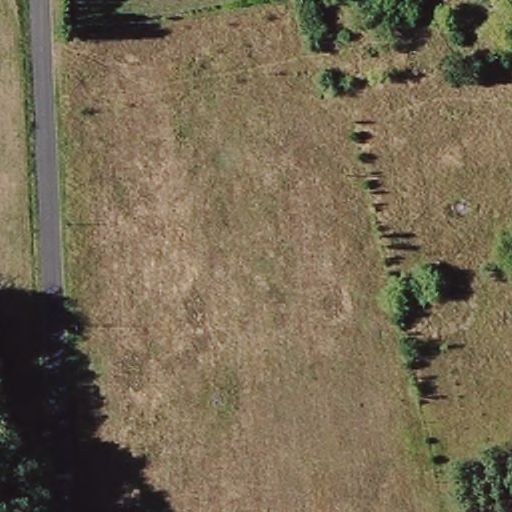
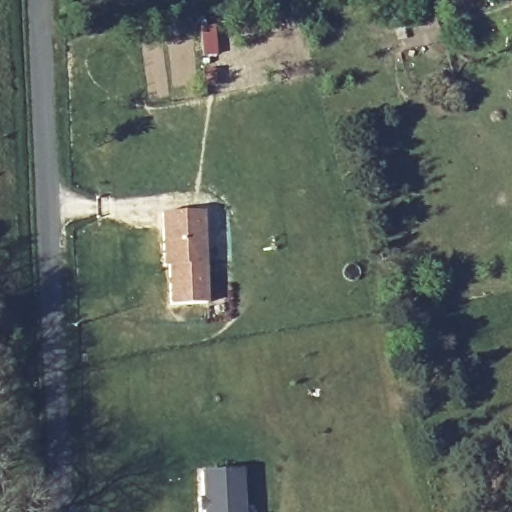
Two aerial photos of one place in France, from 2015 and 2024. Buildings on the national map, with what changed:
new [(164,258),(163,216),(189,215),(204,214),(205,232),(207,306),(171,307),(170,268),(165,268),(164,258)]
new [(246,512),(201,512),(201,502),(206,502),(205,475),(244,473),(246,512)]

